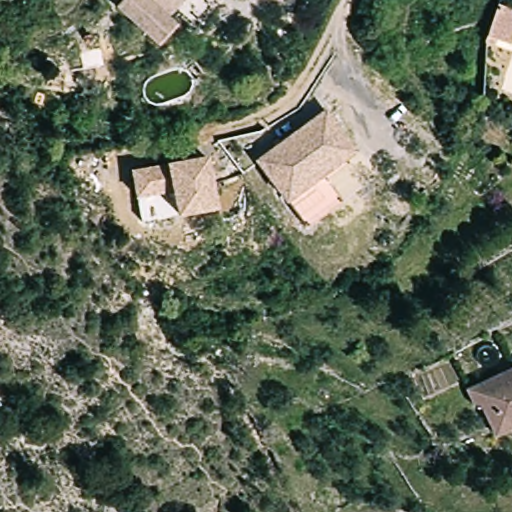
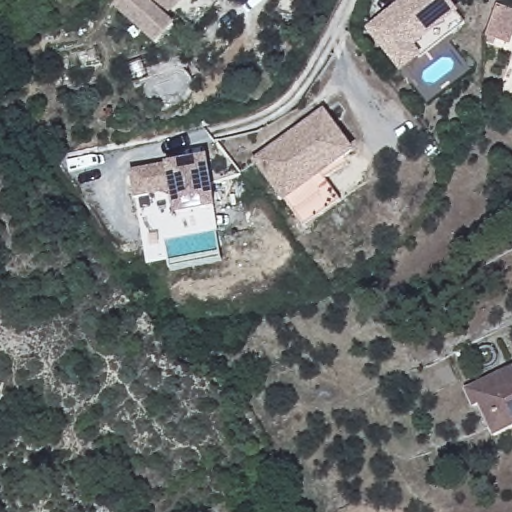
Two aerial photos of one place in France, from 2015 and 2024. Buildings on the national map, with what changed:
unchanged [(174,24),(154,44),(117,4),(120,0),(181,0),(166,14),(174,24)]
new [(399,0),(450,0),(459,11),(415,47),(423,57),(400,74),(364,28),(399,0)]
unchanged [(495,5),(512,11),(512,33),(508,45),(485,37),(495,5)]
unchanged [(283,204),(251,161),(324,110),(354,154),(283,204)]
unchanged [(142,221),(136,198),(132,171),(168,162),(209,156),(217,210),(178,216),(142,221)]
unchanged [(342,202),(302,231),(283,204),(323,176),(342,202)]
unchanged [(476,400),(467,404),(460,388),(507,367),(510,372),(512,371),(512,434),(509,426),(492,434),(476,400)]

